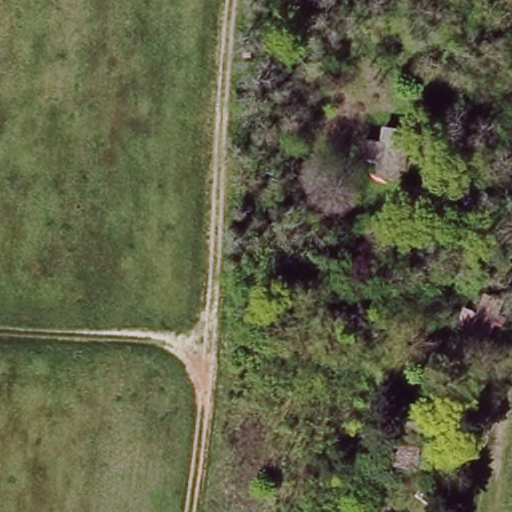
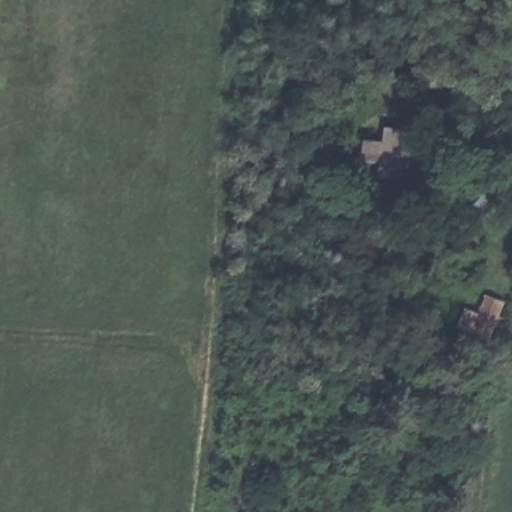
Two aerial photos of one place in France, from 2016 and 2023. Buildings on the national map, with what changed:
unchanged [(402,168),(382,164),(388,121),(408,123),(402,168)]
unchanged [(495,334),(466,329),(471,307),(486,312),(491,294),(506,298),(495,334)]
unchanged [(423,436),(407,433),(410,419),(400,416),(403,401),(429,406),(423,436)]
unchanged [(420,451),(415,472),(393,468),(397,444),(420,451)]

